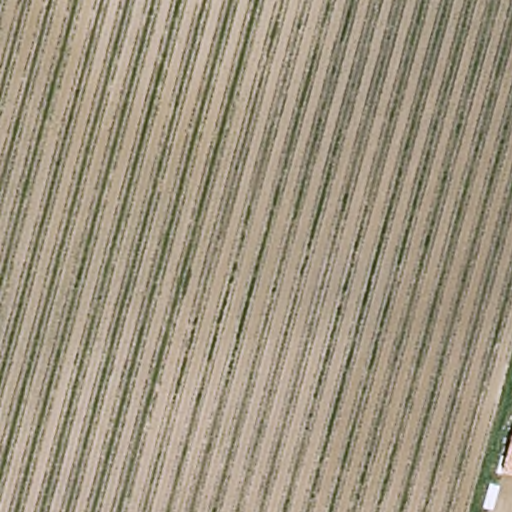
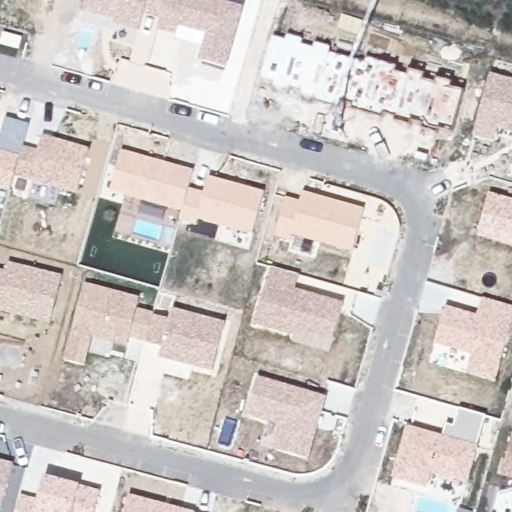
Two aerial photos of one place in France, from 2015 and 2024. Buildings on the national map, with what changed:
new [(227,67),(200,60),(207,34),(179,26),(176,36),(157,31),(160,17),(145,14),(139,31),(115,25),(115,20),(82,11),(85,0),(220,0),(244,6),(227,67)]
new [(442,130),(440,134),(422,128),(424,123),(412,120),(411,125),(395,120),(397,116),(385,113),(383,117),(353,109),(354,103),(343,100),(340,107),(300,95),(302,90),(290,87),(288,90),(273,86),(275,82),(262,79),(273,37),(285,40),(287,35),(305,40),(305,45),(314,47),(315,43),(332,48),(332,54),(365,62),(367,57),(397,66),(396,72),(407,75),(410,69),(427,74),(426,80),(436,83),(438,78),(453,81),(452,87),(465,91),(452,133),(442,130)]
new [(498,128),(494,141),(472,135),(490,73),(512,79),(512,132),(498,128)]
new [(15,176),(10,192),(0,189),(0,139),(6,117),(30,123),(23,146),(38,150),(43,135),(90,148),(77,193),(15,176)]
new [(199,220),(197,226),(179,221),(182,212),(110,191),(122,149),(195,171),(190,188),(204,192),(210,176),(267,192),(252,235),(199,220)]
new [(292,235),(290,241),(275,237),(287,197),(300,201),(303,192),(365,209),(352,252),(292,235)]
new [(478,235),(490,193),(512,199),(512,245),(478,235)]
new [(0,311),(0,270),(5,271),(8,262),(63,276),(50,324),(0,311)]
new [(295,328),(292,338),(253,326),(272,268),(300,276),(297,288),(345,302),(332,340),(295,328)]
new [(212,372),(160,359),(163,347),(130,337),(127,348),(93,338),(86,366),(63,361),(85,283),(140,298),(137,310),(155,313),(154,315),(154,316),(170,319),(173,309),(227,322),(212,372)]
new [(467,374),(472,355),(435,344),(447,306),(477,315),(483,297),(512,306),(512,324),(496,383),(467,374)]
new [(310,460),(275,451),(282,426),(246,416),(257,376),(327,397),(310,460)]
new [(433,474),(427,488),(392,479),(408,425),(442,435),(447,423),(455,425),(460,407),(487,416),(468,483),(433,474)]
unchanged [(503,476),(512,438),(512,479),(503,476)]
new [(0,509),(0,460),(14,463),(0,509)]
new [(38,499),(46,477),(80,486),(100,491),(95,512),(16,512),(21,496),(38,499)]
new [(125,512),(130,495),(193,512),(125,512)]

